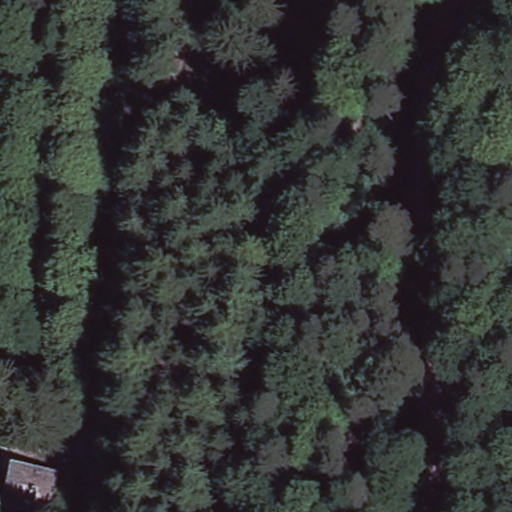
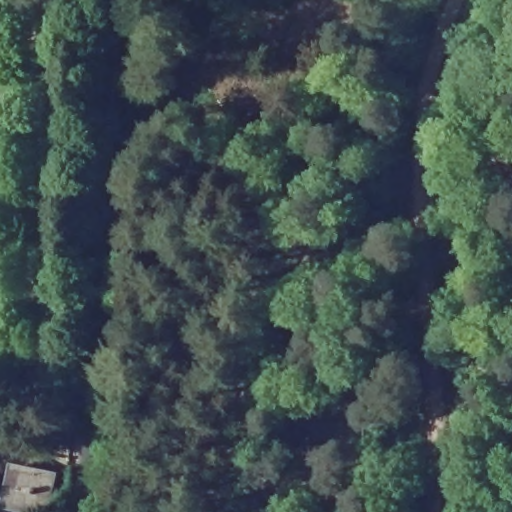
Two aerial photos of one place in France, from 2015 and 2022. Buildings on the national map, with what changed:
unchanged [(53,474),(45,512),(40,512),(30,510),(30,512),(12,512),(7,510),(16,465),(53,474)]

